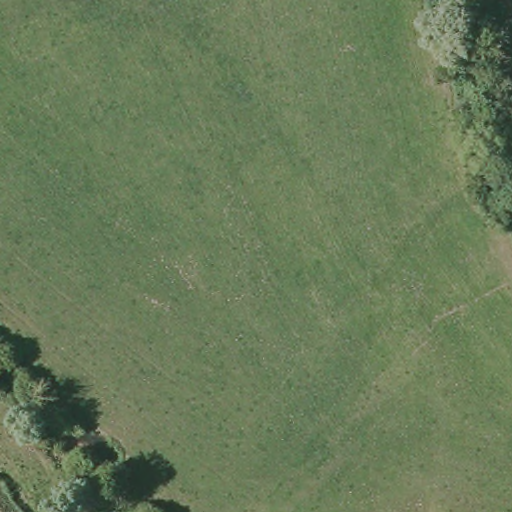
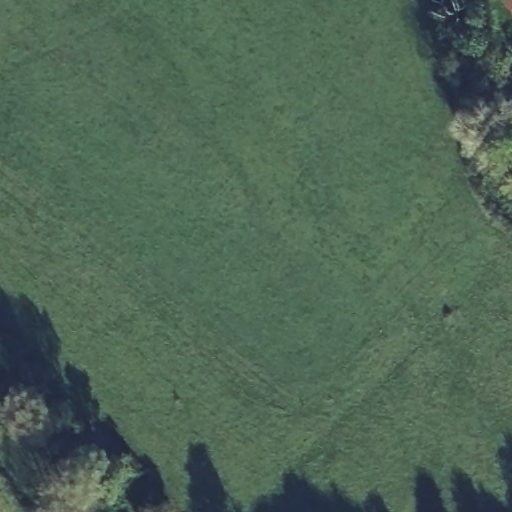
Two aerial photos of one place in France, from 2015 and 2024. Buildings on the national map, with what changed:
unchanged [(482,30),(511,0),(512,0),(512,46),(500,52),(482,30)]

